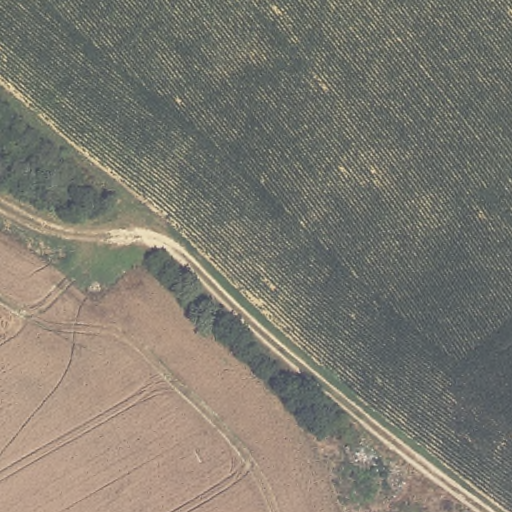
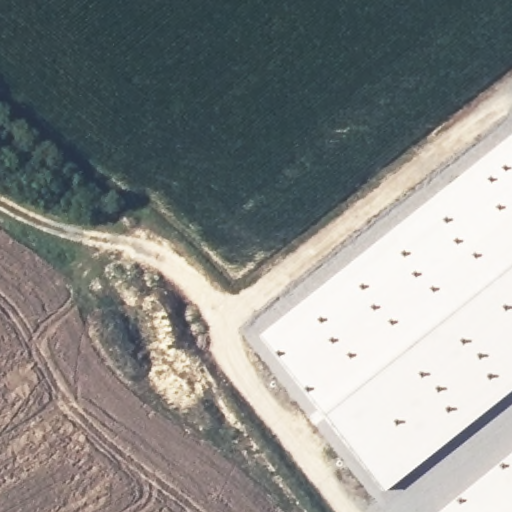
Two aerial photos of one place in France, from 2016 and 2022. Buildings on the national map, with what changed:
new [(512,135),(512,389),(382,493),(258,337),(511,134),(512,135)]
unchanged [(512,451),(512,512),(437,512),(512,451)]

